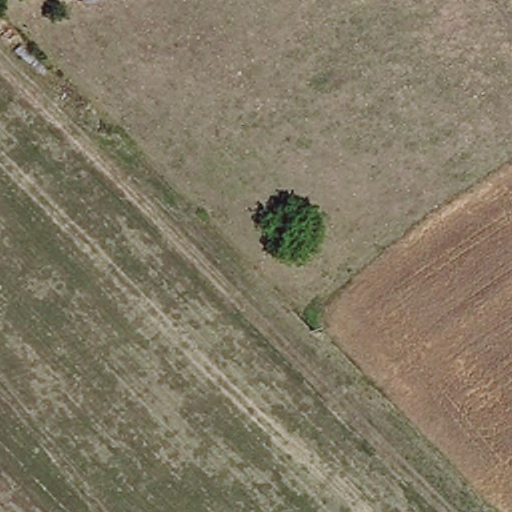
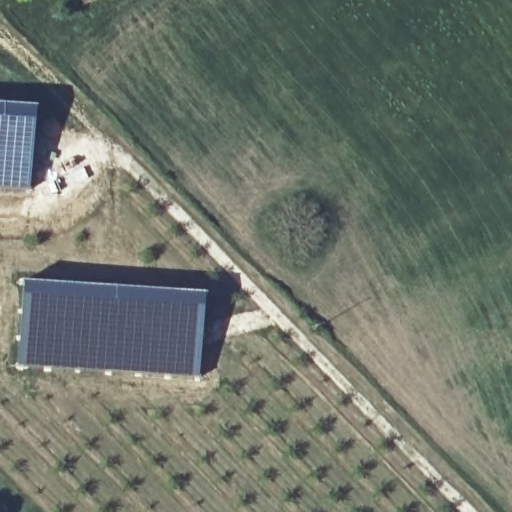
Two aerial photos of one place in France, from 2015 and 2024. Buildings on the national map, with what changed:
new [(31,189),(0,187),(0,103),(37,106),(31,189)]
new [(21,280),(205,291),(199,378),(16,365),(21,280)]

